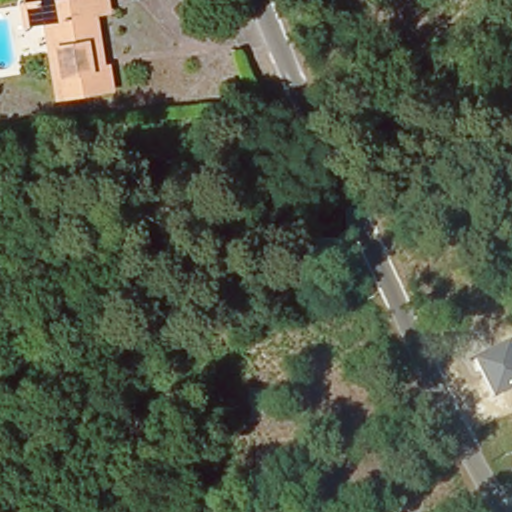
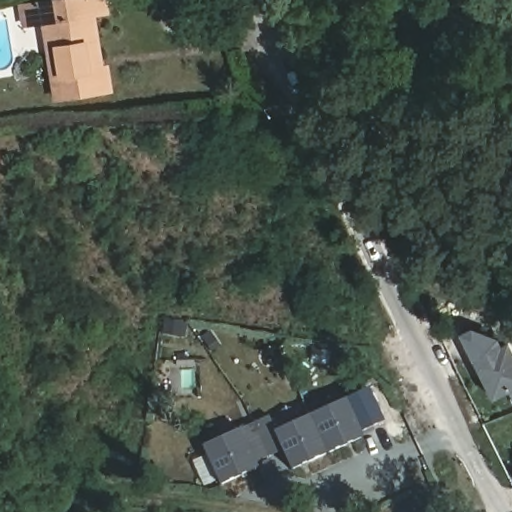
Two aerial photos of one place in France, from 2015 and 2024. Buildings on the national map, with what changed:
unchanged [(55,104),(43,26),(44,26),(41,9),(78,4),(99,0),(102,0),(105,16),(81,21),(90,75),(107,73),(111,96),(55,104)]
unchanged [(493,400),(474,360),(509,342),(512,349),(512,390),(493,400)]
new [(376,430),(289,470),(281,450),(214,478),(203,448),(273,418),(277,428),(360,392),(376,430)]

